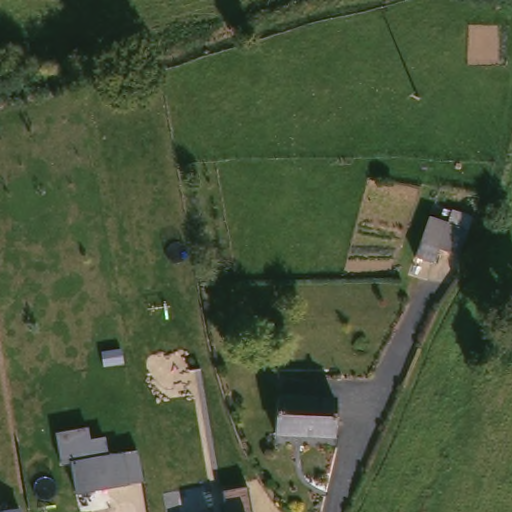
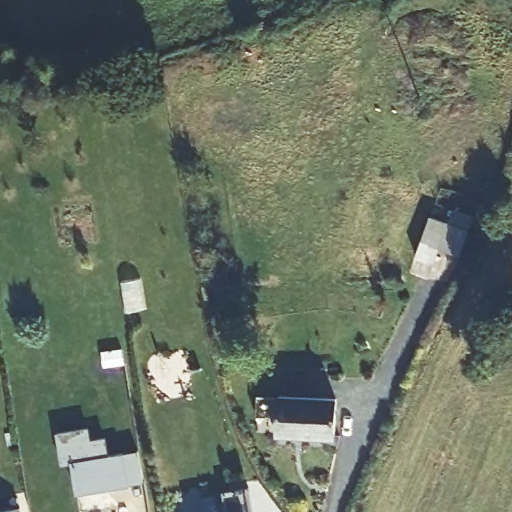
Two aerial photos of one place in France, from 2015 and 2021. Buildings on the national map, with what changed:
unchanged [(421,244),(430,217),(449,224),(454,211),(473,217),(468,231),(459,257),(421,244)]
unchanged [(277,435),(278,397),(336,400),(335,437),(277,435)]
unchanged [(74,467),(61,466),(53,435),(85,428),(88,440),(102,438),(106,453),(137,452),(143,482),(82,495),(74,467)]
unchanged [(250,491),(255,512),(228,512),(224,495),(250,491)]
unchanged [(21,512),(5,512),(20,510),(21,512)]

